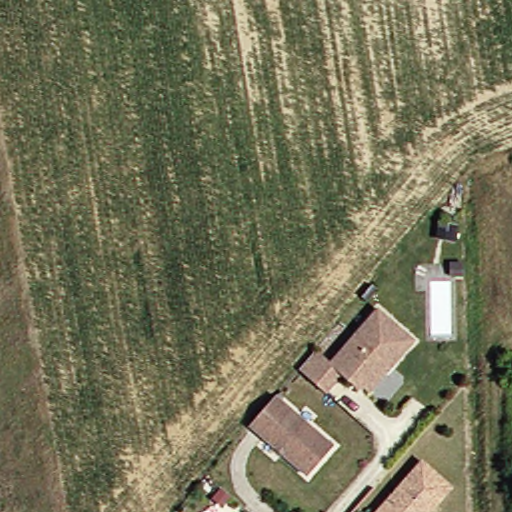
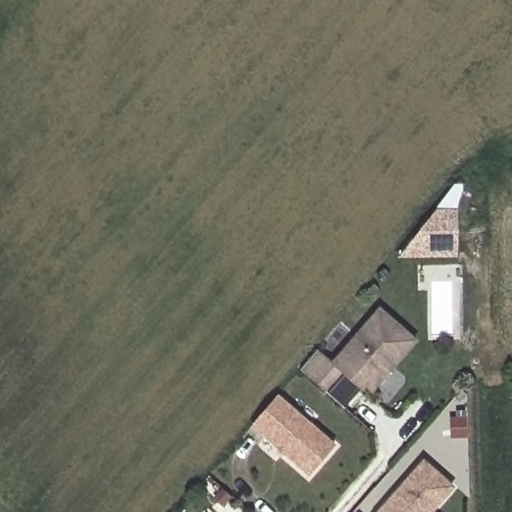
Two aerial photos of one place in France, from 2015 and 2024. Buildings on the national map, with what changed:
new [(403,258),(402,253),(435,210),(456,210),(457,258),(403,258)]
unchanged [(360,390),(342,375),(326,394),(299,370),(316,351),(331,364),(378,310),(415,341),(389,371),(370,393),(363,386),(360,390)]
unchanged [(334,445),(307,477),(250,427),(266,408),(276,397),(334,445)]
unchanged [(422,462),(451,487),(430,512),(379,512),(422,462)]

